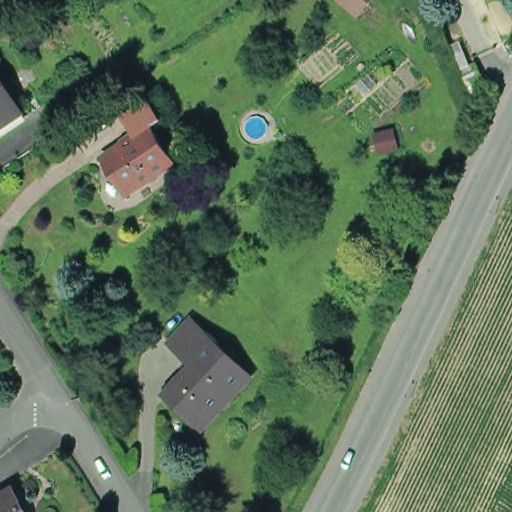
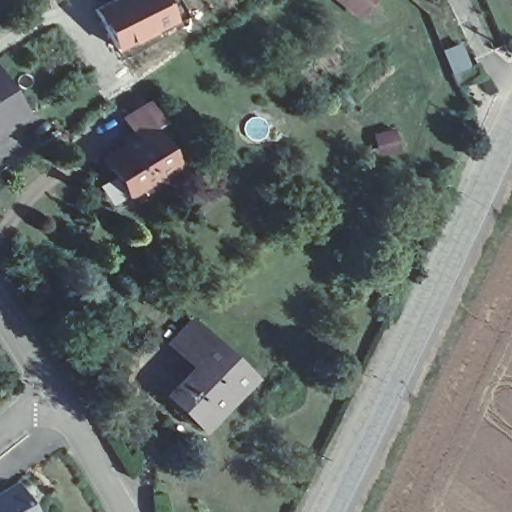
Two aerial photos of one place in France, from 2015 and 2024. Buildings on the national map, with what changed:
new [(103,0),(162,0),(172,17),(116,50),(92,6),(103,0)]
unchanged [(356,13),(340,0),(367,0),(356,13)]
unchanged [(451,74),(476,64),(481,77),(456,87),(451,74)]
unchanged [(26,113),(0,131),(0,73),(26,113)]
unchanged [(121,178),(109,158),(141,138),(129,119),(154,104),(167,123),(158,129),(181,166),(137,192),(133,196),(121,178)]
unchanged [(256,377),(208,428),(173,395),(199,366),(175,342),(196,320),(256,377)]
unchanged [(33,512),(0,512),(0,509),(23,495),(33,512)]

